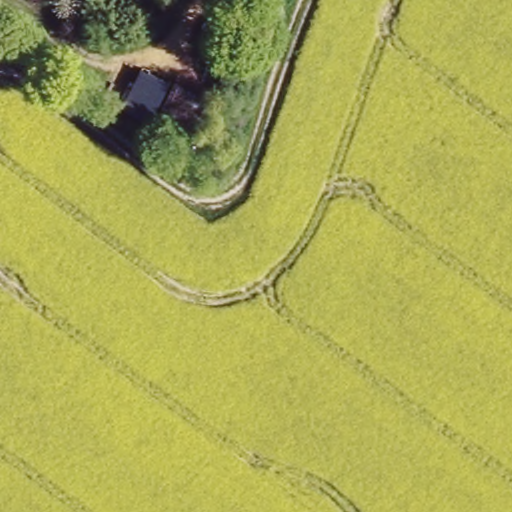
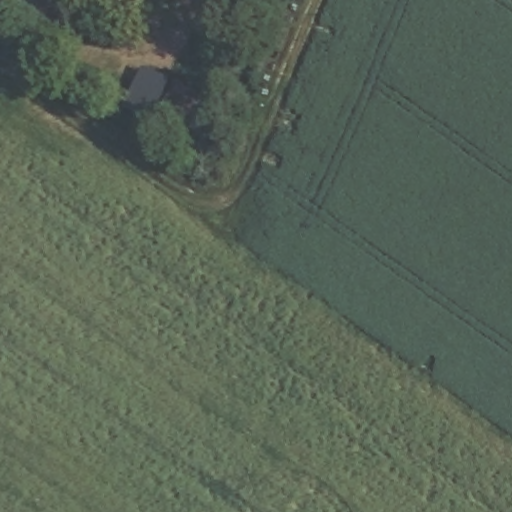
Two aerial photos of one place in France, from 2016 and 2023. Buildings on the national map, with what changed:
unchanged [(209,104),(196,136),(154,116),(173,82),(209,104)]

